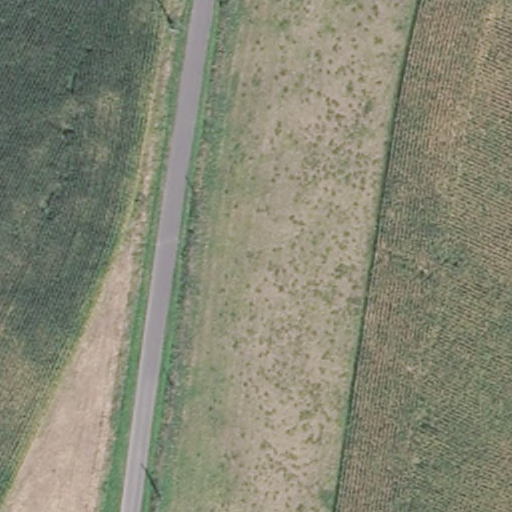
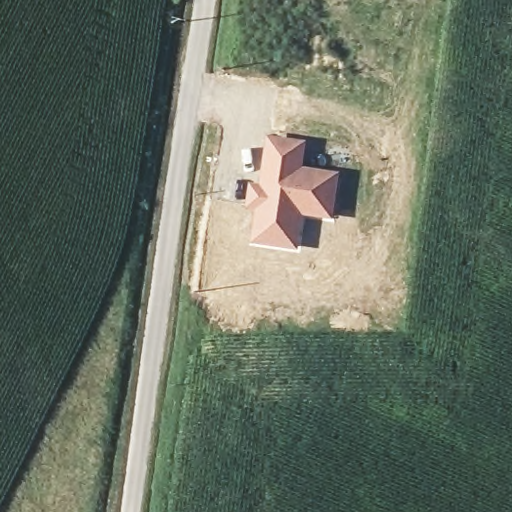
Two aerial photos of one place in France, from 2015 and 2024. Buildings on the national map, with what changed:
new [(308,141),(305,167),(340,171),(336,219),(305,214),(300,250),(252,244),(257,209),(247,208),(250,182),(261,184),(267,135),(308,141)]

